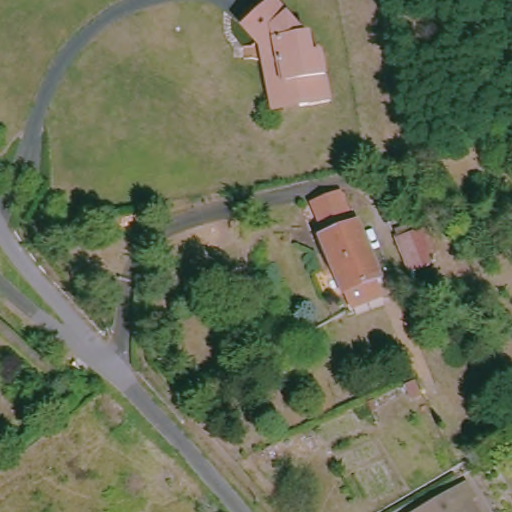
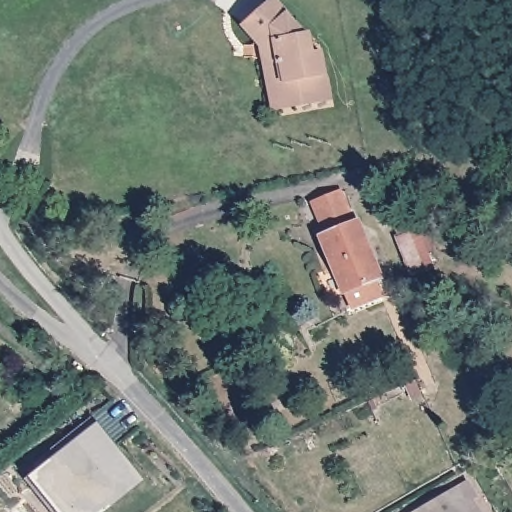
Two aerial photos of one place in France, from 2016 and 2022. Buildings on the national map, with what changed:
unchanged [(301,101),(271,107),(259,43),(240,22),(265,0),(275,0),(303,32),(310,32),(312,48),(320,47),(324,74),(328,96),(301,101)]
unchanged [(358,215),(379,271),(343,284),(320,229),(358,215)]
new [(98,423),(146,481),(108,512),(51,512),(26,481),(30,478),(98,423)]
unchanged [(471,495),(469,496),(478,512),(410,512),(462,481),(471,495)]

